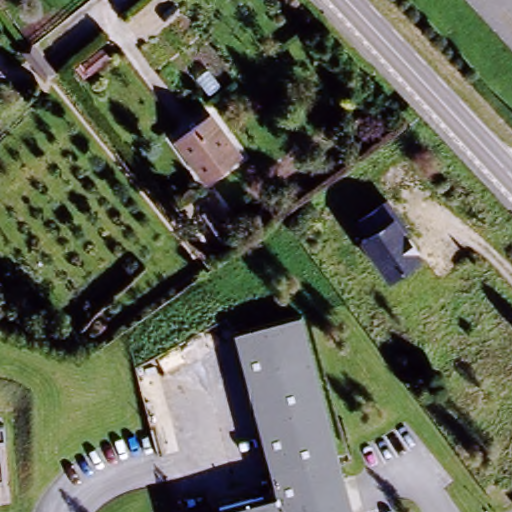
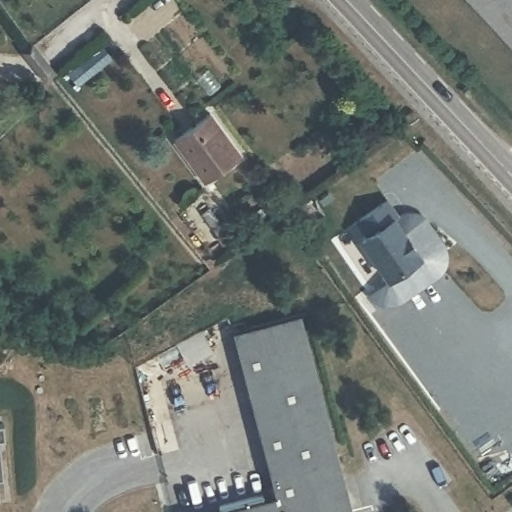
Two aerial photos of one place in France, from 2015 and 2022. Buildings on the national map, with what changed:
unchanged [(462,0),(512,0),(512,53),(462,0)]
unchanged [(211,114),(241,151),(203,180),(174,142),(211,114)]
unchanged [(379,205),(415,256),(384,280),(356,244),(362,238),(352,225),(379,205)]
unchanged [(354,512),(213,512),(276,495),(233,335),(300,317),(354,512)]
unchanged [(3,440),(0,441),(0,427),(1,426),(3,440)]
unchanged [(0,466),(1,480),(0,480),(0,466)]

